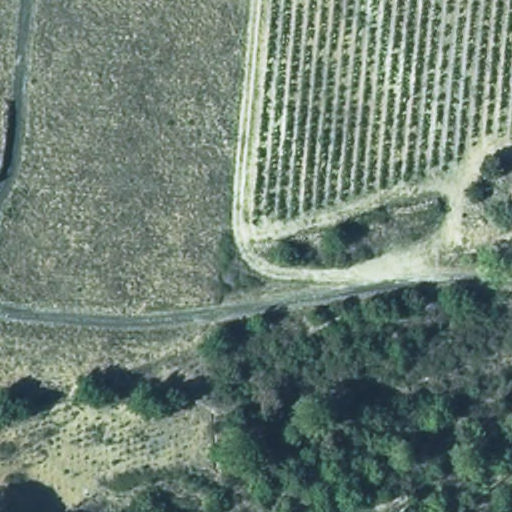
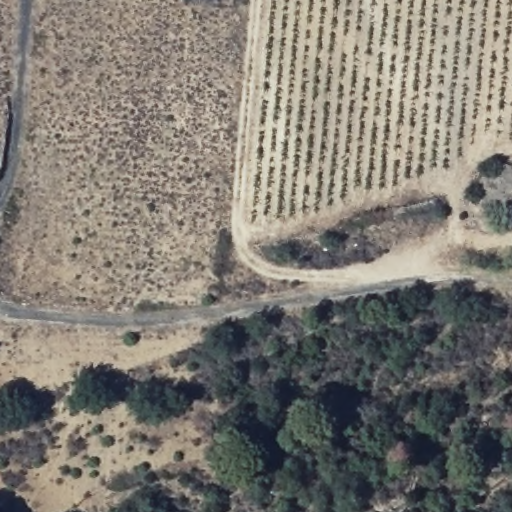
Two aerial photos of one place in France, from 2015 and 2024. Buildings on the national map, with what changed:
unchanged [(397,485),(410,498),(396,508),(382,496),(397,485)]

